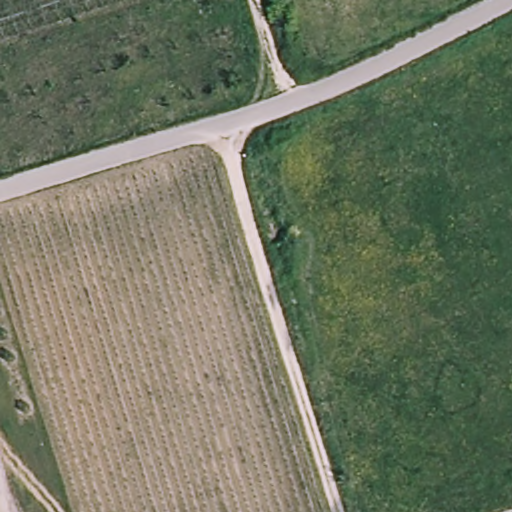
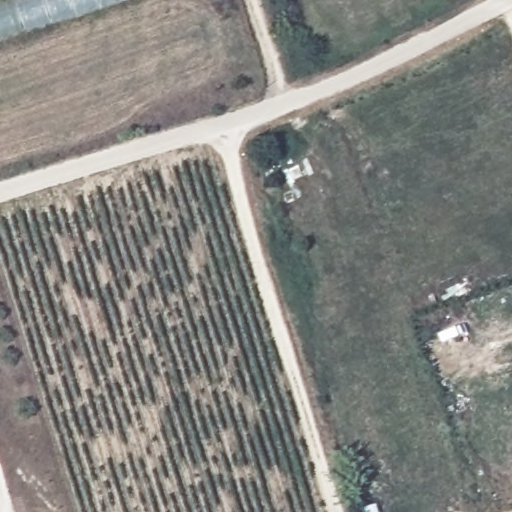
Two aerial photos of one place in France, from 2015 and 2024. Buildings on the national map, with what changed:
demolished [(0,40),(0,0),(121,0),(0,40)]
new [(0,43),(0,8),(24,0),(135,0),(0,43)]

